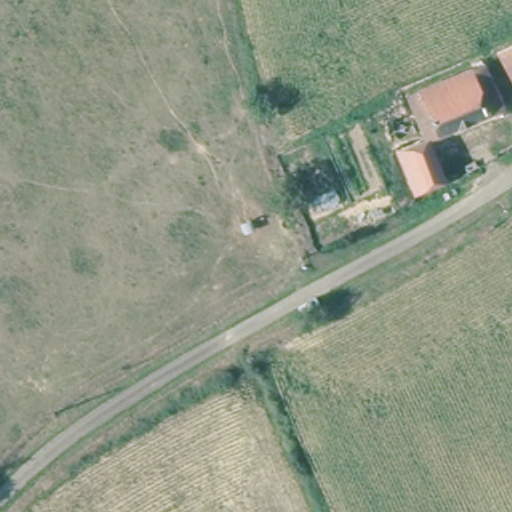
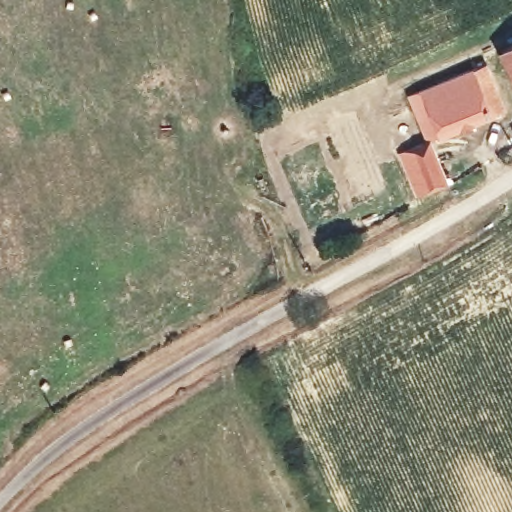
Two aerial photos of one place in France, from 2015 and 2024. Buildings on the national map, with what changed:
unchanged [(512,32),(512,67),(497,40),(512,32)]
unchanged [(472,66),(481,86),(493,81),(504,108),(428,138),(411,95),(472,66)]
unchanged [(400,150),(428,138),(447,183),(418,197),(400,150)]

